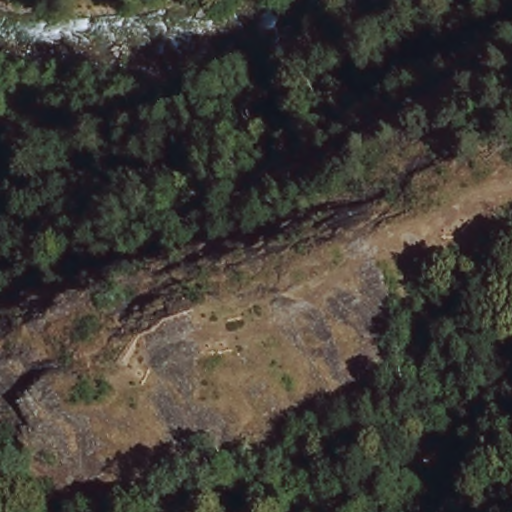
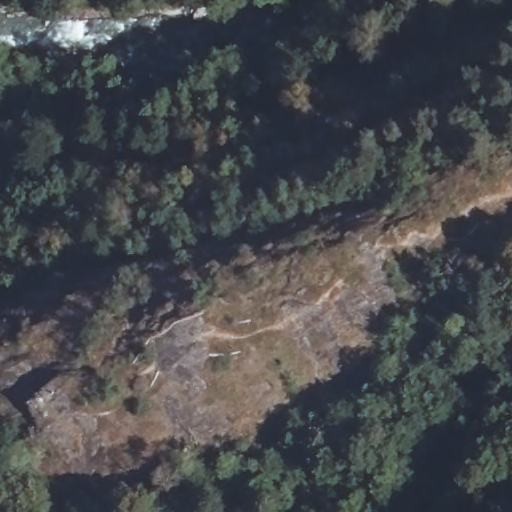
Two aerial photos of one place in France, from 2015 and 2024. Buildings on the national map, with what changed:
[]

